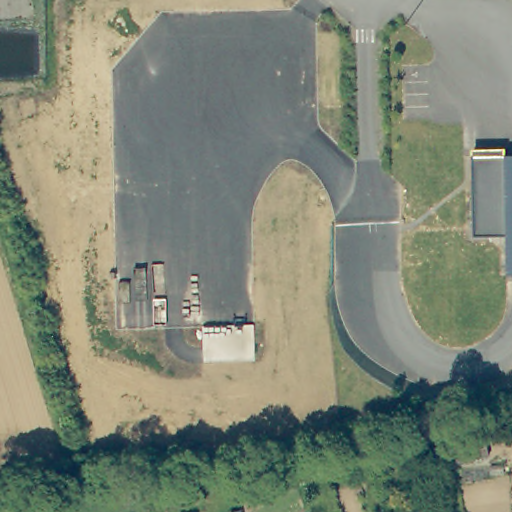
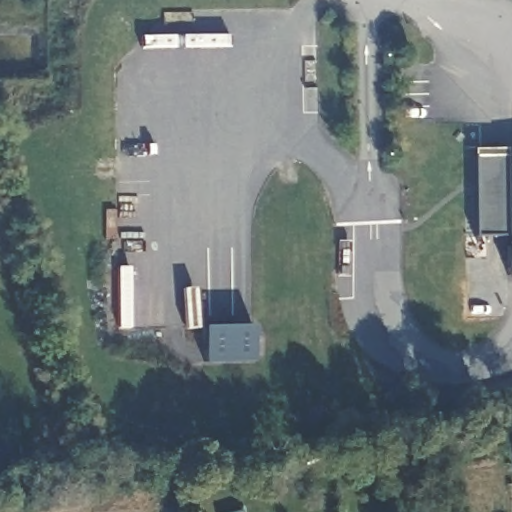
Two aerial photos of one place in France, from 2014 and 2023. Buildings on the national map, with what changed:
unchanged [(511,273),(510,233),(476,234),(473,153),(512,152),(512,273),(511,273)]
new [(205,363),(204,327),(254,326),(255,361),(205,363)]
unchanged [(492,453),(462,460),(458,446),(448,448),(445,428),(485,420),(492,453)]

